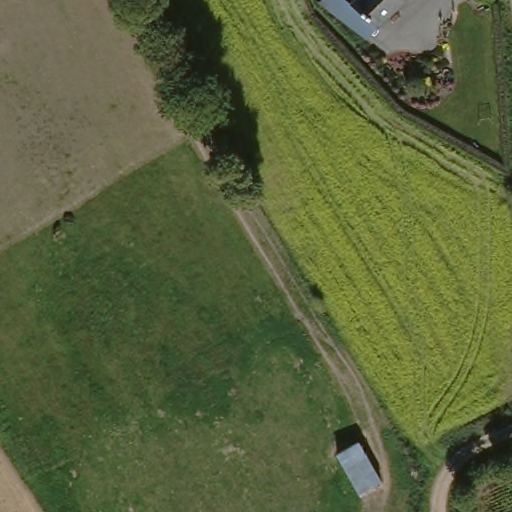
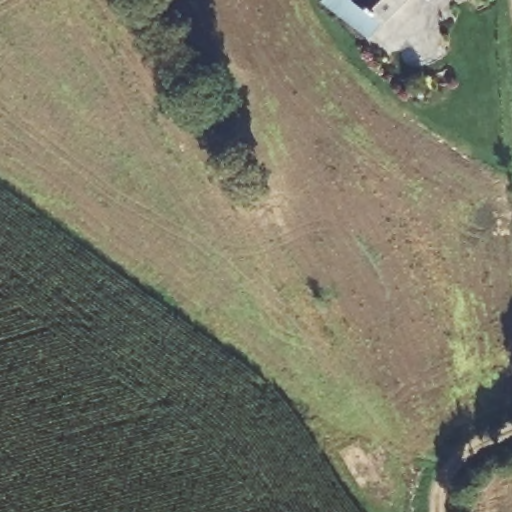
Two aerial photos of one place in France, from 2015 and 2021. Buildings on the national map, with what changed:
unchanged [(352,3),(355,0),(407,0),(379,28),(352,3)]
new [(385,481),(361,495),(337,453),(360,441),(385,481)]

